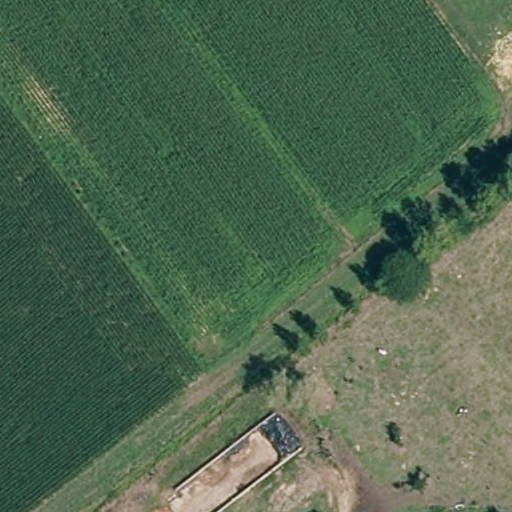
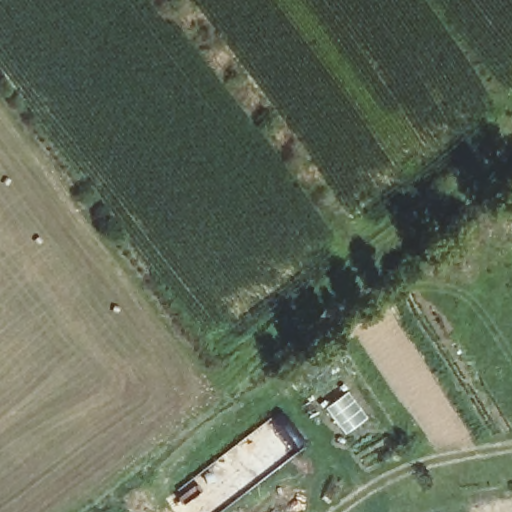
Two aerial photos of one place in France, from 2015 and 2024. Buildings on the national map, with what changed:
[]

